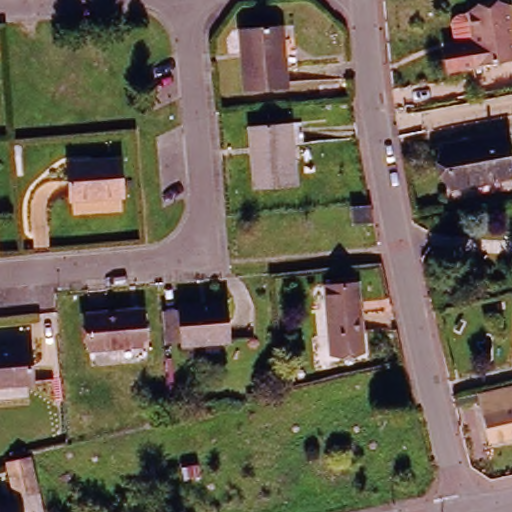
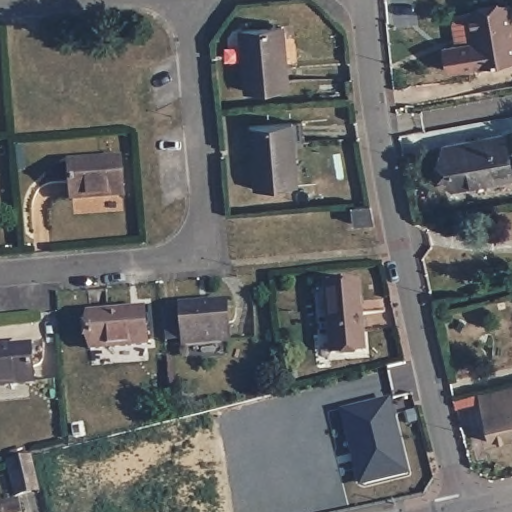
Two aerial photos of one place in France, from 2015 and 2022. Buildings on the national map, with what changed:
unchanged [(466,44),(471,43),(465,13),(505,5),(512,36),(512,59),(470,68),(466,44)]
unchanged [(244,90),(237,29),(279,24),(285,85),(244,90)]
unchanged [(255,190),(248,126),(290,121),(296,185),(255,190)]
unchanged [(441,191),(433,152),(496,139),(503,177),(441,191)]
unchanged [(67,198),(65,161),(115,156),(118,193),(67,198)]
unchanged [(345,202),(368,200),(371,222),(347,224),(345,202)]
unchanged [(333,355),(327,287),(358,284),(365,351),(333,355)]
unchanged [(183,303),(225,298),(230,338),(187,342),(187,338),(170,340),(166,309),(184,307),(183,303)]
unchanged [(141,343),(85,348),(82,313),(138,307),(141,343)]
unchanged [(0,347),(28,345),(31,382),(0,384),(0,347)]
unchanged [(475,399),(453,404),(451,397),(473,393),(505,386),(505,388),(512,386),(512,434),(484,440),(475,399)]
new [(390,402),(407,475),(365,485),(360,483),(356,469),(359,464),(361,464),(352,431),(348,432),(343,413),(390,402)]
unchanged [(5,459),(12,457),(28,453),(35,486),(13,491),(5,459)]
unchanged [(0,505),(12,503),(14,512),(0,512),(0,505)]

